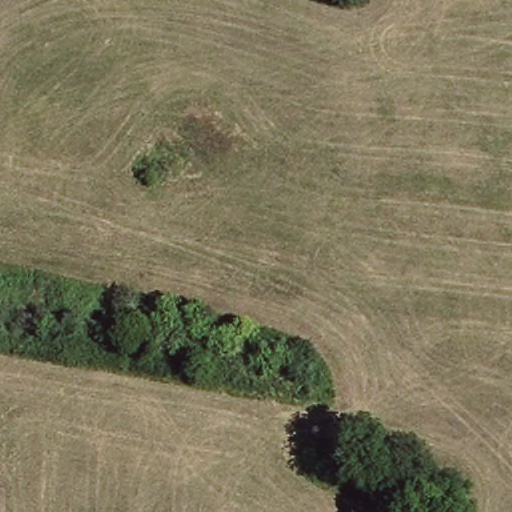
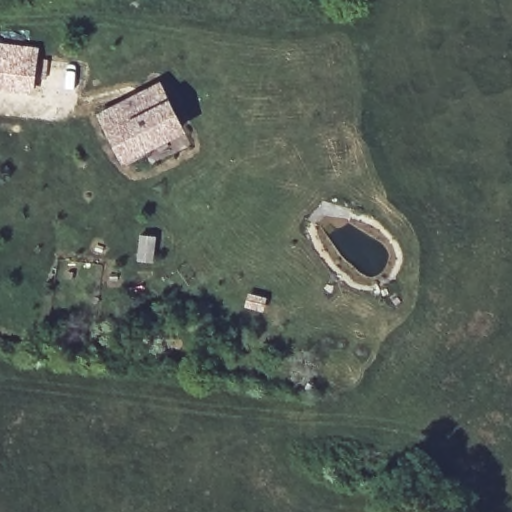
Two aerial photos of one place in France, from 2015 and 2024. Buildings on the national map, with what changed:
new [(39,47),(35,83),(17,79),(5,78),(5,84),(10,85),(9,91),(0,90),(0,42),(39,47)]
new [(161,81),(186,132),(145,152),(122,163),(98,114),(161,81)]

